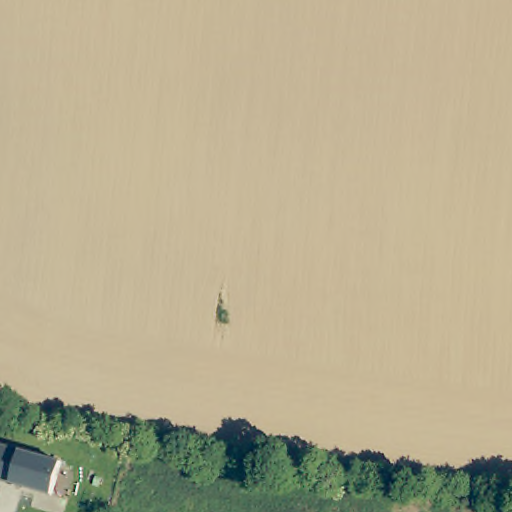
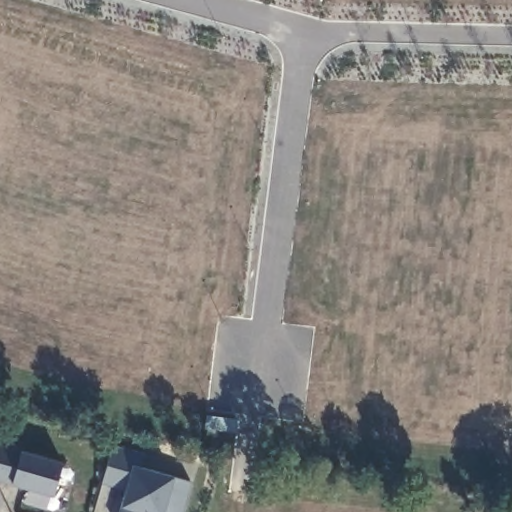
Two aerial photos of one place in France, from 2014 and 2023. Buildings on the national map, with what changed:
unchanged [(54,492),(0,479),(0,443),(63,460),(54,492)]
new [(119,503),(123,489),(102,483),(112,446),(144,453),(141,466),(175,476),(190,480),(181,512),(117,512),(119,503)]

